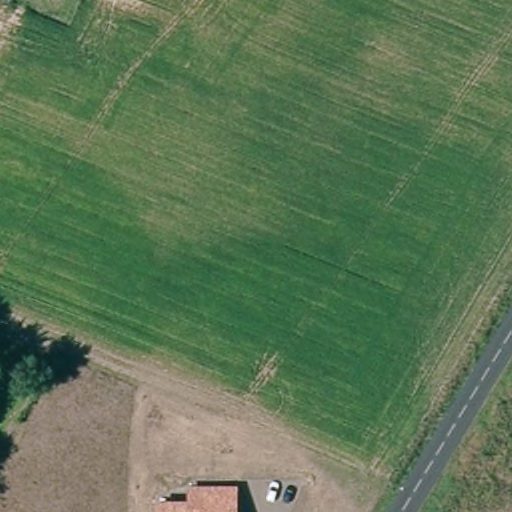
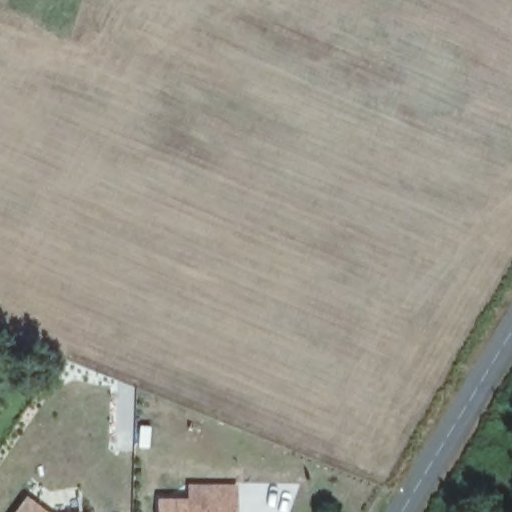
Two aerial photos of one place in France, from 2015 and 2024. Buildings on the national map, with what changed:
unchanged [(239,484),(238,512),(158,512),(158,499),(189,499),(189,484),(239,484)]
new [(26,496),(48,512),(15,512),(26,496)]

